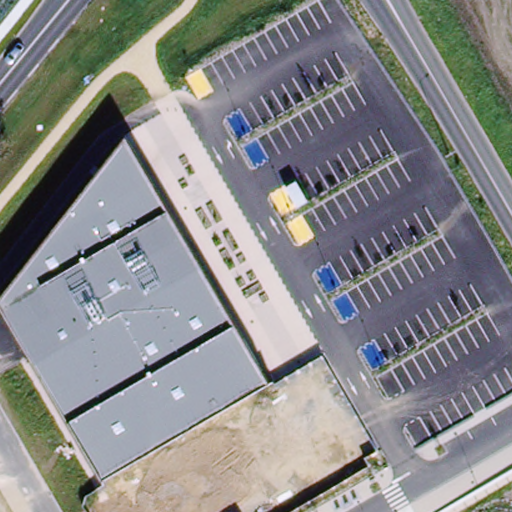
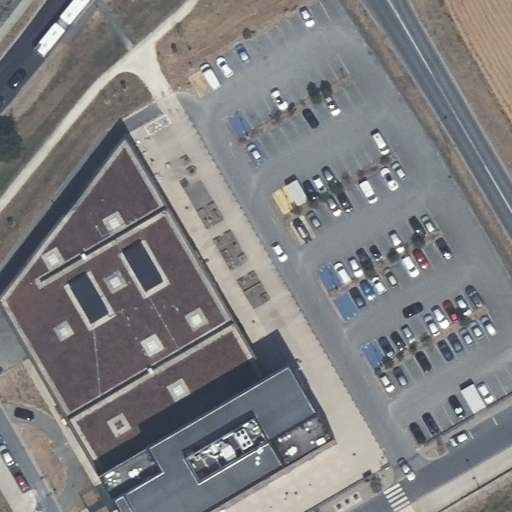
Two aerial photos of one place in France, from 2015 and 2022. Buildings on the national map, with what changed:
unchanged [(103,480),(0,311),(0,299),(126,137),(270,383),(103,480)]
new [(293,371),(320,419),(335,443),(286,470),(214,512),(122,512),(119,505),(103,480),(151,452),(270,383),(293,371)]

